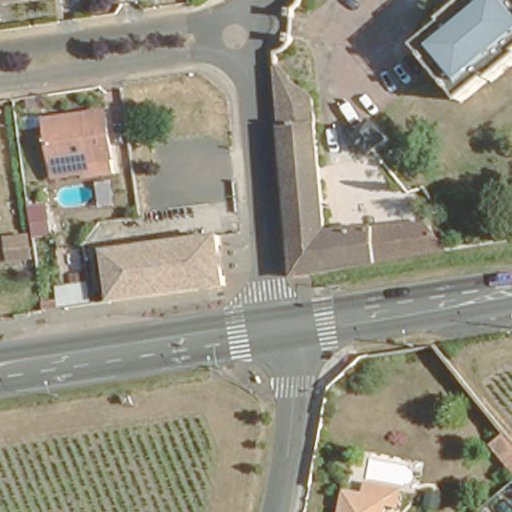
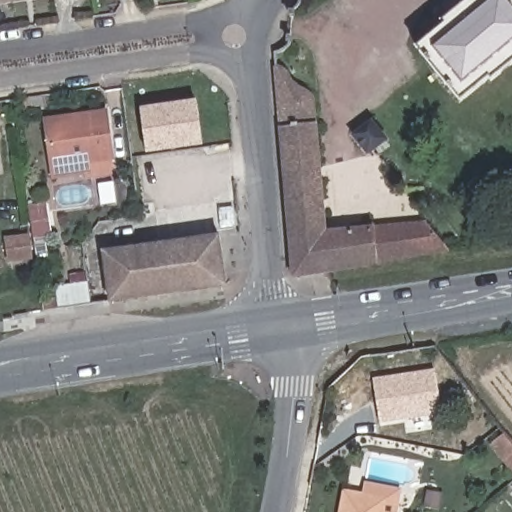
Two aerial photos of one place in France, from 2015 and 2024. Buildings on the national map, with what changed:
unchanged [(484,76),(482,79),(478,82),(465,93),(459,98),(429,66),(412,46),(433,29),(427,21),(424,17),(436,3),(433,0),(512,0),(512,53),(484,76)]
unchanged [(423,218),(450,254),(447,255),(444,255),(396,263),(389,264),(292,280),(270,67),(311,86),(320,195),(324,230),(362,224),(422,215),(423,218)]
new [(146,154),(140,108),(196,100),(203,146),(146,154)]
unchanged [(50,160),(46,110),(104,104),(112,168),(81,170),(80,166),(51,169),(50,160)]
unchanged [(384,128),(385,129),(386,130),(374,140),(368,144),(356,129),(373,113),(384,128)]
new [(34,260),(7,264),(4,237),(30,234),(27,207),(49,204),(52,237),(31,239),(34,260)]
unchanged [(105,243),(223,224),(228,279),(114,297),(105,243)]
new [(373,379),(435,369),(442,414),(380,424),(373,379)]
unchanged [(392,488),(387,512),(347,512),(353,482),(392,488)]
unchanged [(443,493),(441,502),(430,499),(431,491),(443,493)]

